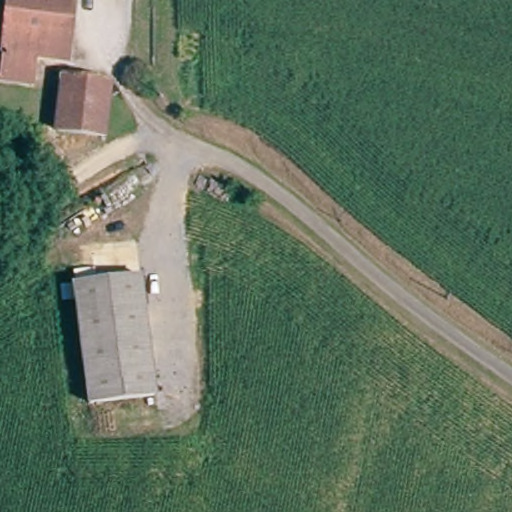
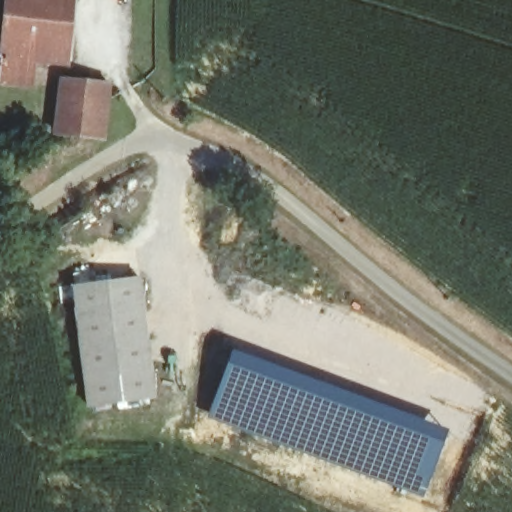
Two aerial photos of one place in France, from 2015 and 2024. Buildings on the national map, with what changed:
unchanged [(32,88),(3,86),(10,0),(70,0),(64,56),(64,66),(35,65),(32,88)]
unchanged [(117,134),(48,127),(51,97),(54,75),(122,80),(121,94),(117,134)]
unchanged [(140,273),(154,397),(85,407),(69,282),(140,273)]
new [(317,454),(308,451),(307,455),(207,418),(232,351),(448,431),(423,498),(316,458),(317,454)]

